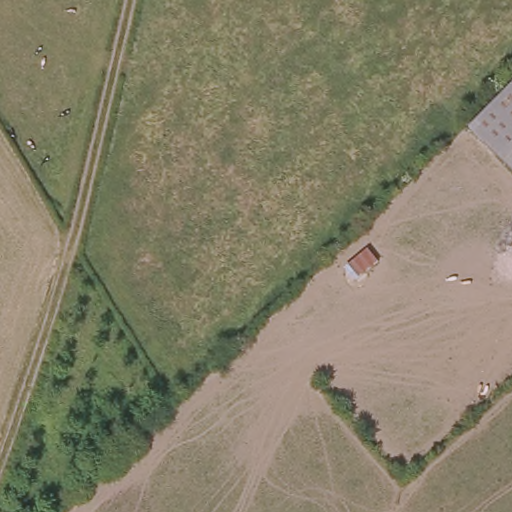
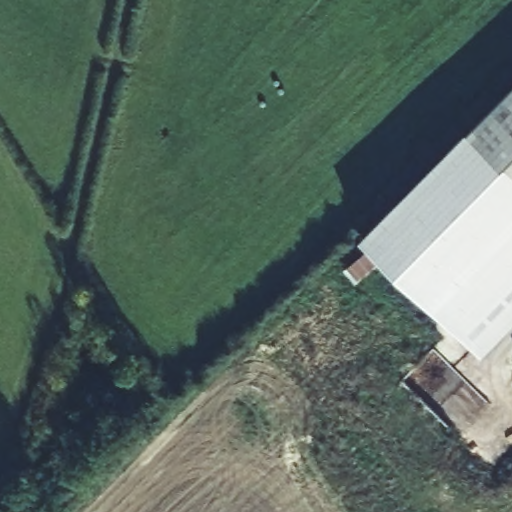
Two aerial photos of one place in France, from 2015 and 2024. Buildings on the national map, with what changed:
unchanged [(466,127),(487,107),(512,83),(512,176),(466,127)]
new [(483,358),(362,234),(466,127),(512,175),(512,328),(483,358)]

